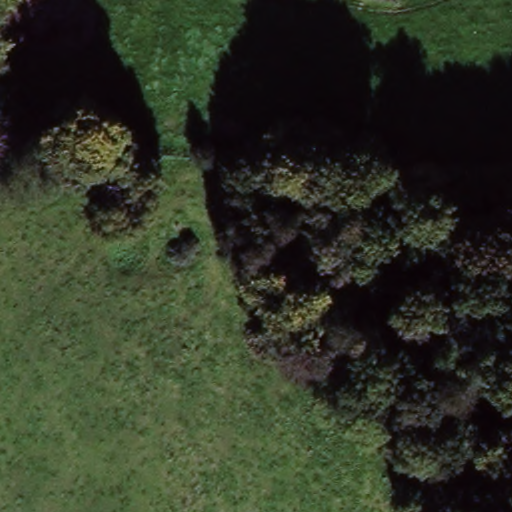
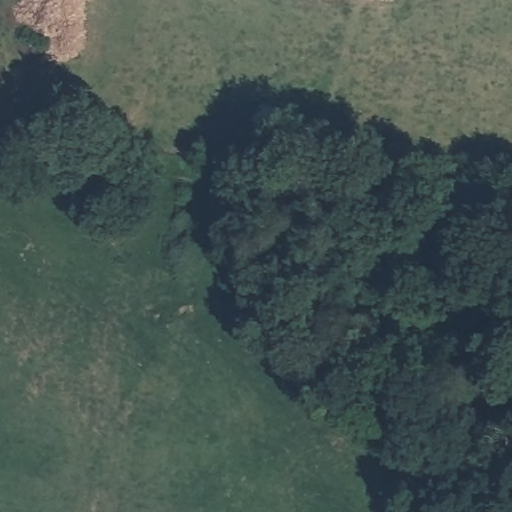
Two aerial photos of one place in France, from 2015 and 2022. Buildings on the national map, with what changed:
[]

